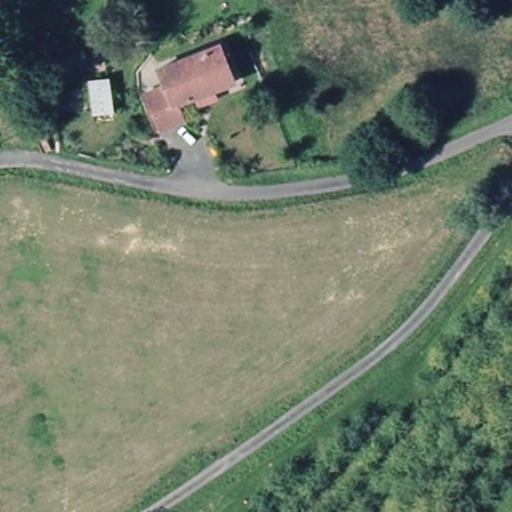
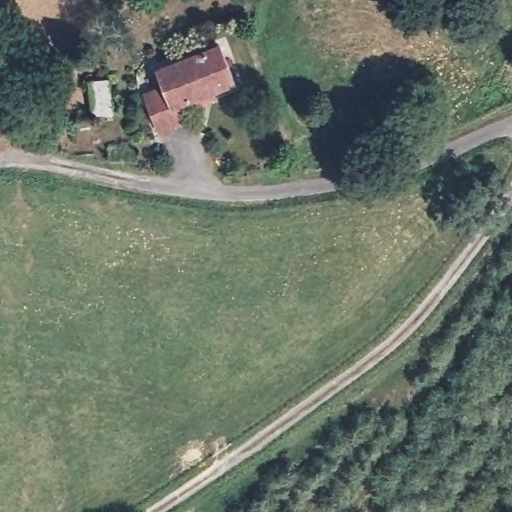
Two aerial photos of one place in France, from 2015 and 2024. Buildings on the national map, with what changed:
unchanged [(197,115),(193,104),(177,110),(185,131),(162,140),(146,96),(166,89),(160,74),(214,53),(221,51),(234,88),(228,90),(211,96),(215,108),(197,115)]
unchanged [(114,79),(115,114),(91,114),(90,80),(114,79)]

